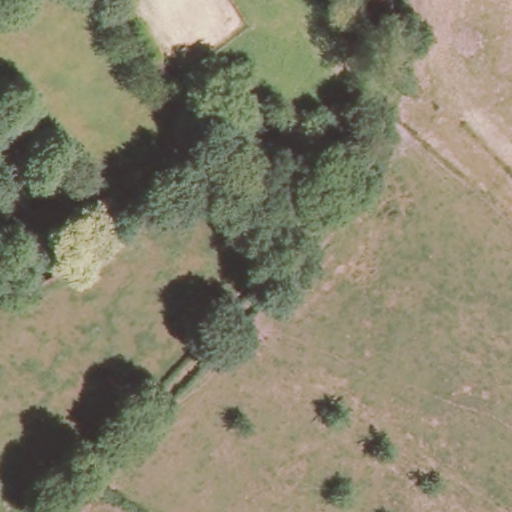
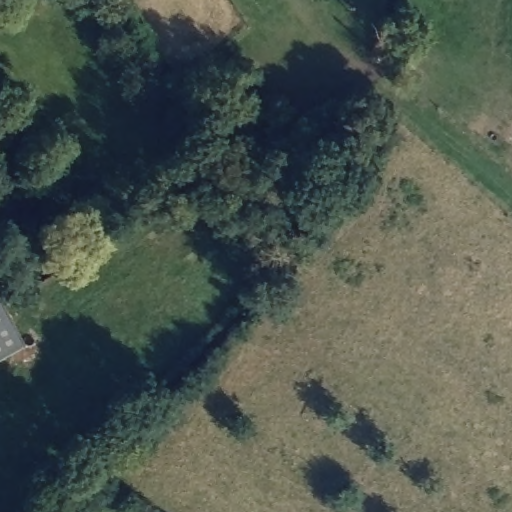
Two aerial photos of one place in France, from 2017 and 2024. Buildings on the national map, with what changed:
new [(25,346),(0,360),(0,299),(25,346)]

